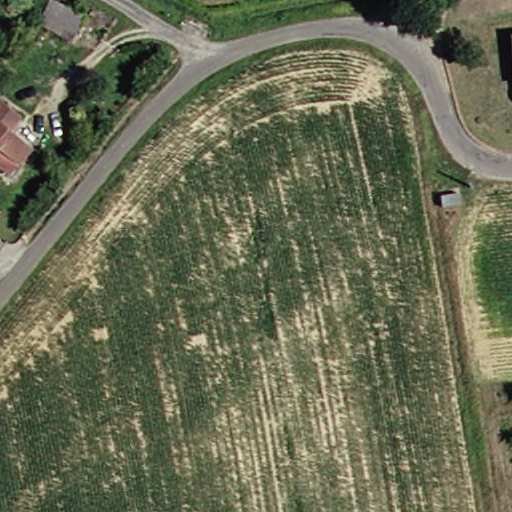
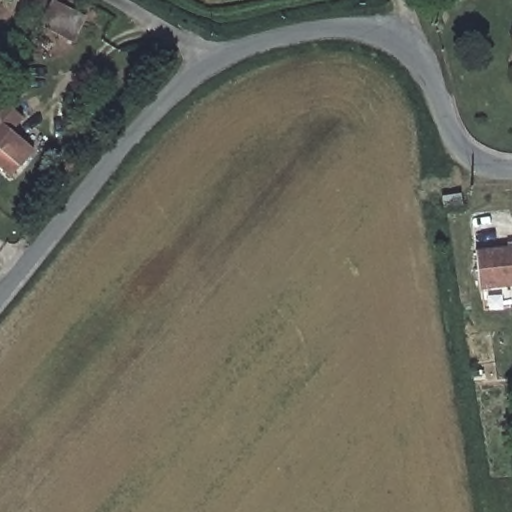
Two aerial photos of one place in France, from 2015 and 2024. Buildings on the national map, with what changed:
unchanged [(85,18),(73,42),(39,25),(51,1),(85,18)]
unchanged [(16,132),(38,149),(15,175),(0,163),(0,150),(1,149),(0,147),(0,97),(27,118),(16,132)]
unchanged [(460,194),(461,205),(442,209),(440,197),(460,194)]
new [(511,288),(481,292),(477,251),(512,247),(512,298),(511,288)]

